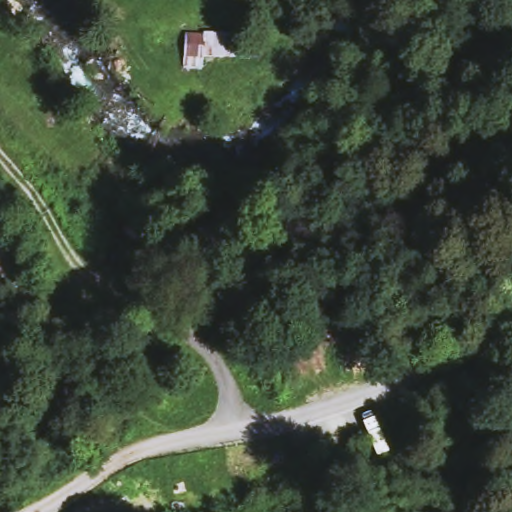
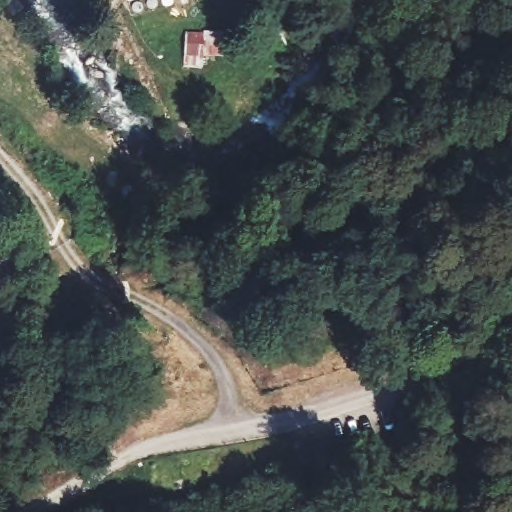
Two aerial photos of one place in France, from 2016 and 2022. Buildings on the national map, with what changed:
unchanged [(204,57),(203,69),(185,69),(185,30),(238,29),(239,54),(204,57)]

